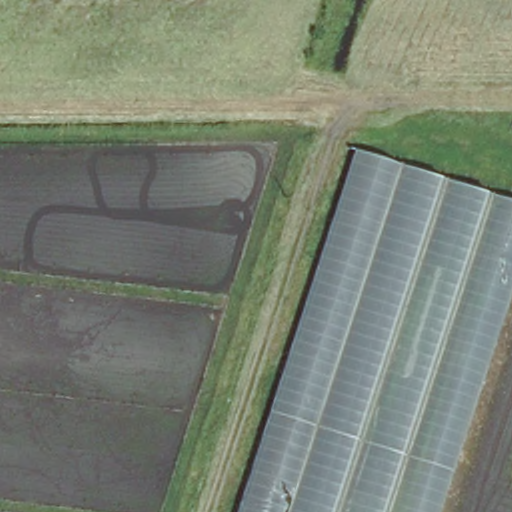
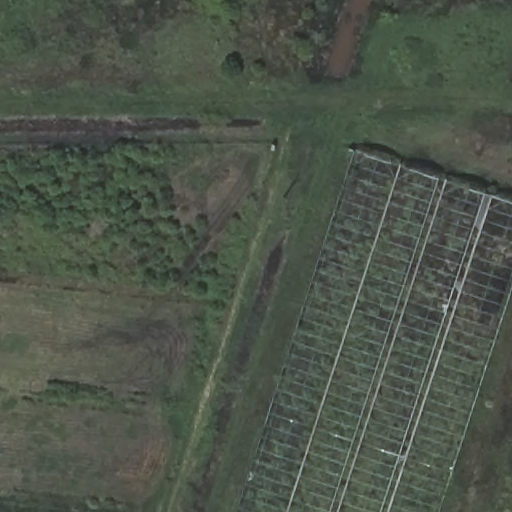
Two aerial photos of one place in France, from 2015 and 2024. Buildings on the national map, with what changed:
unchanged [(512,203),(512,308),(444,512),(237,512),(355,151),(512,203)]

